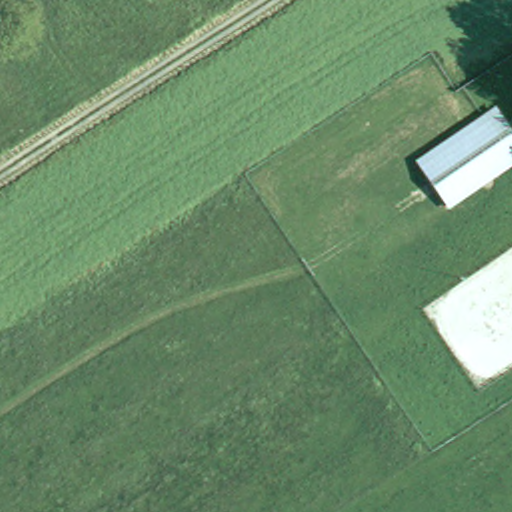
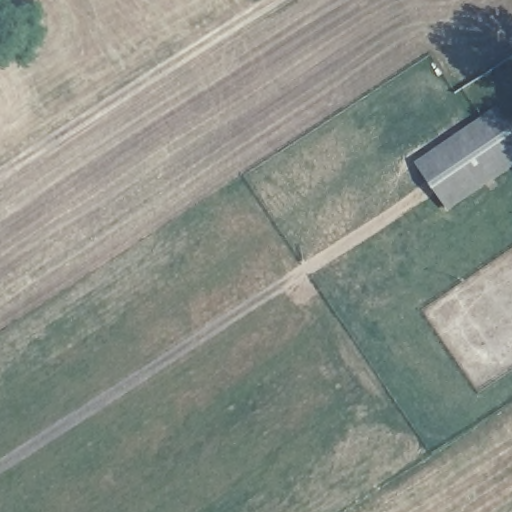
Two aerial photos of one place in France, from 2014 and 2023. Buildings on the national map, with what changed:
unchanged [(512,131),(512,170),(447,214),(412,164),(495,107),(512,131)]

